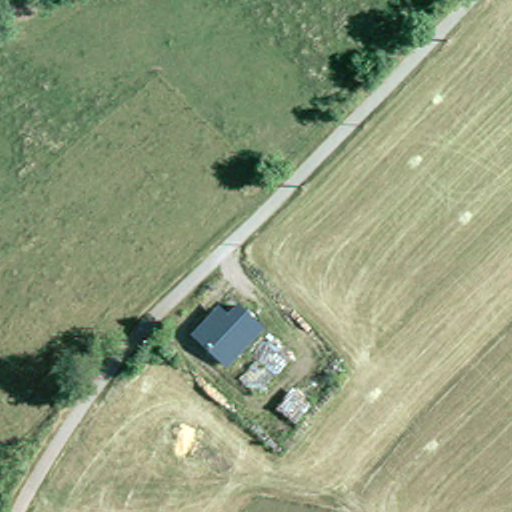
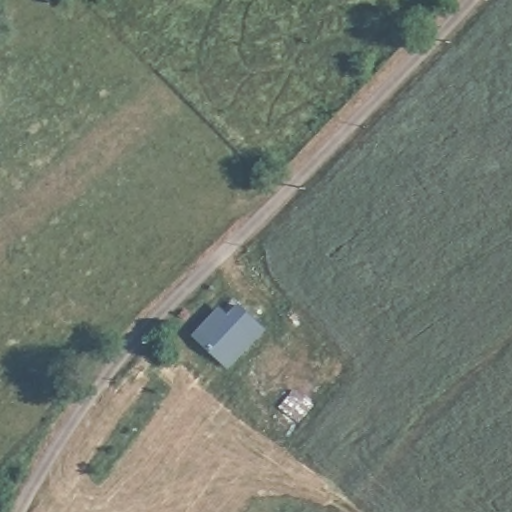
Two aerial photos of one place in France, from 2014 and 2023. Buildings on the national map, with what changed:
unchanged [(192,334),(211,310),(221,319),(236,302),(260,324),(225,362),(192,334)]

